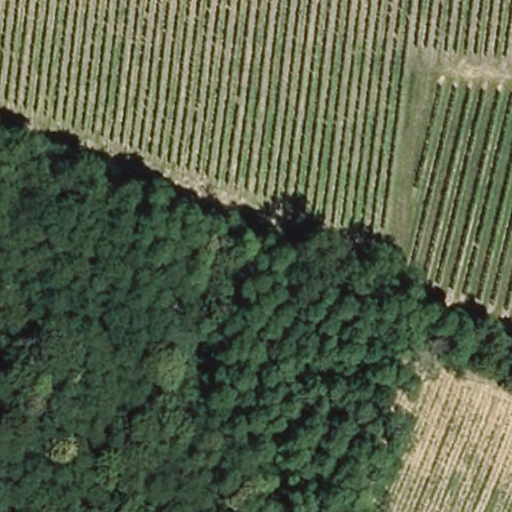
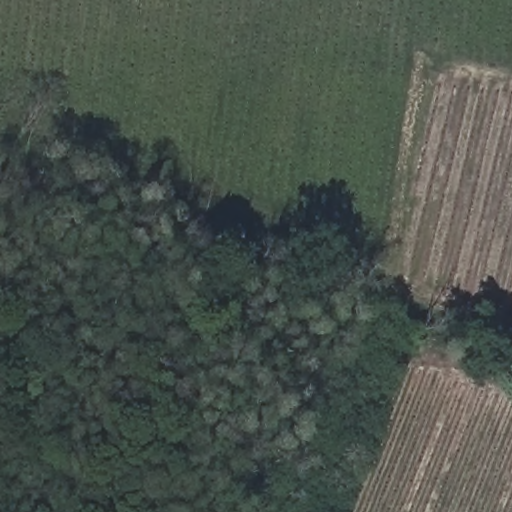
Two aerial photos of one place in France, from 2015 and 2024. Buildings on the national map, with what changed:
unchanged [(408,335),(411,326),(420,329),(417,339),(408,335)]

